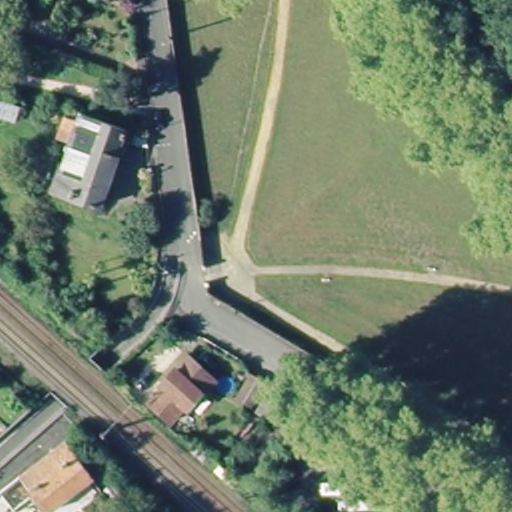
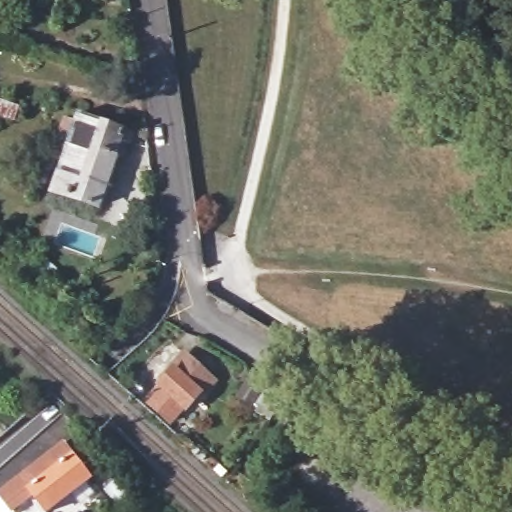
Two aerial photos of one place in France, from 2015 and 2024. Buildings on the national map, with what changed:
unchanged [(19,108),(13,123),(0,119),(0,102),(19,108)]
unchanged [(122,140),(99,208),(51,191),(54,186),(70,142),(57,137),(65,118),(76,122),(80,114),(147,138),(149,150),(122,140)]
unchanged [(167,380),(165,378),(179,362),(182,364),(192,353),(215,373),(191,400),(189,398),(175,413),(155,395),(167,380)]
unchanged [(254,381),(264,390),(245,413),(235,404),(254,381)]
unchanged [(285,405),(264,428),(251,417),(271,394),(285,405)]
unchanged [(45,503),(50,510),(47,512),(41,512),(15,478),(56,446),(80,476),(45,503)]

